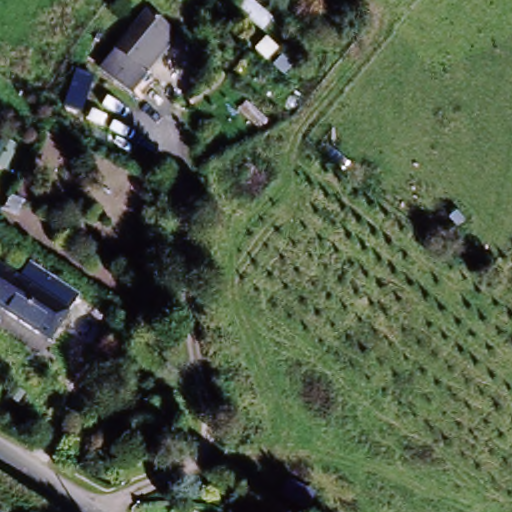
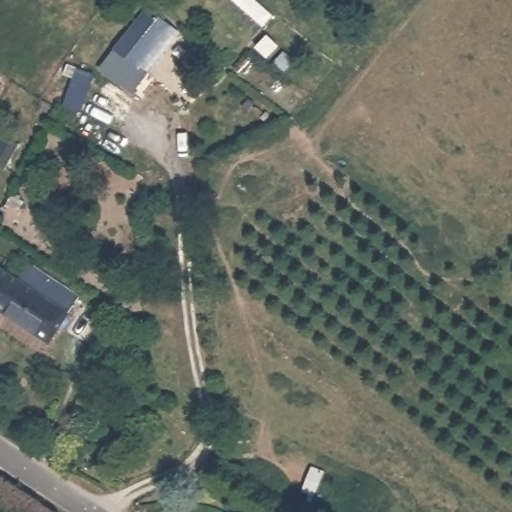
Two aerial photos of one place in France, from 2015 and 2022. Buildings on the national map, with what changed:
unchanged [(255,19),(245,28),(219,4),(222,0),(254,0),(274,19),(263,28),(255,19)]
unchanged [(149,9),(179,36),(132,98),(99,74),(149,9)]
unchanged [(30,277),(75,308),(63,326),(19,295),(30,277)]
unchanged [(49,346),(0,312),(0,281),(19,295),(63,326),(49,346)]

